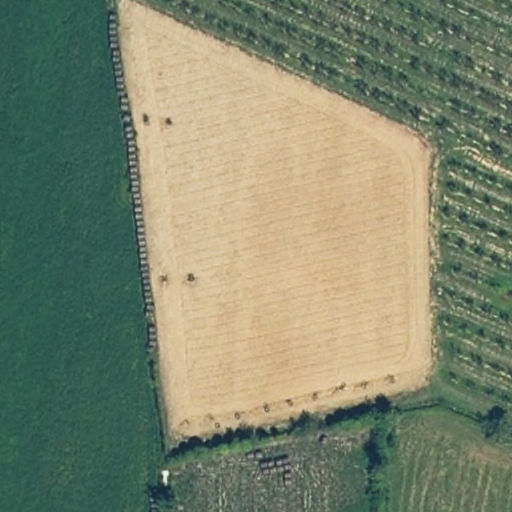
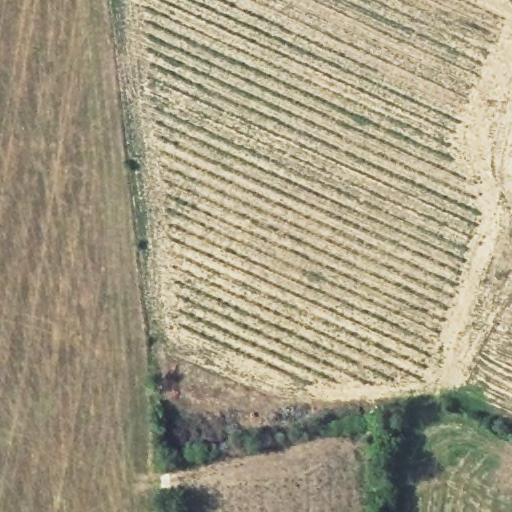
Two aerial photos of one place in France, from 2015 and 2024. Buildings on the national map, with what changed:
[]

